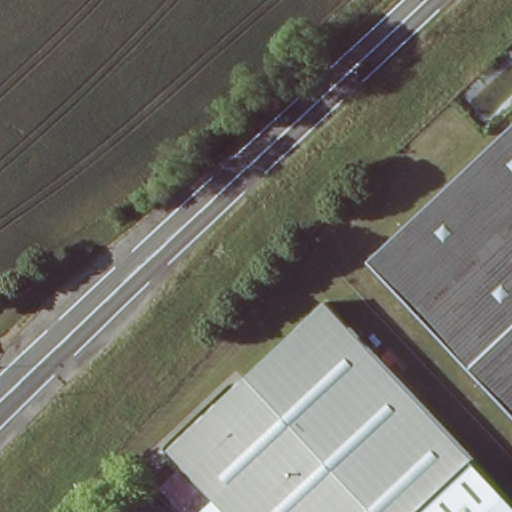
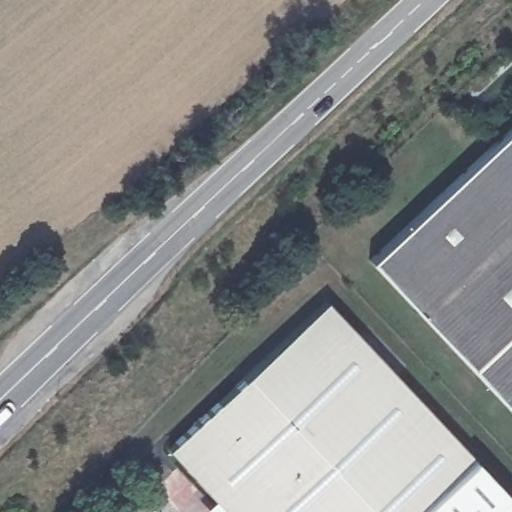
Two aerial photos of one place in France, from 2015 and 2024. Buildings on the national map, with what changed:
unchanged [(512,122),(512,417),(365,260),(512,122)]
unchanged [(322,301),(512,505),(512,512),(223,512),(164,449),(322,301)]

